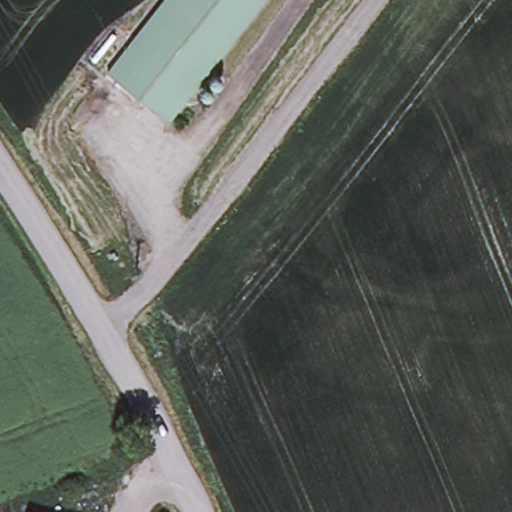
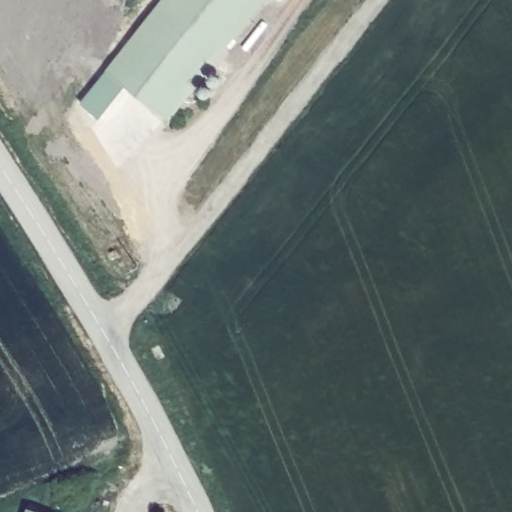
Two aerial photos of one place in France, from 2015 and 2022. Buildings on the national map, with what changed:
unchanged [(163,0),(265,0),(214,65),(212,72),(222,79),(206,98),(194,90),(190,94),(167,121),(105,72),(163,0)]
unchanged [(27,508),(39,512),(25,512),(27,508)]

